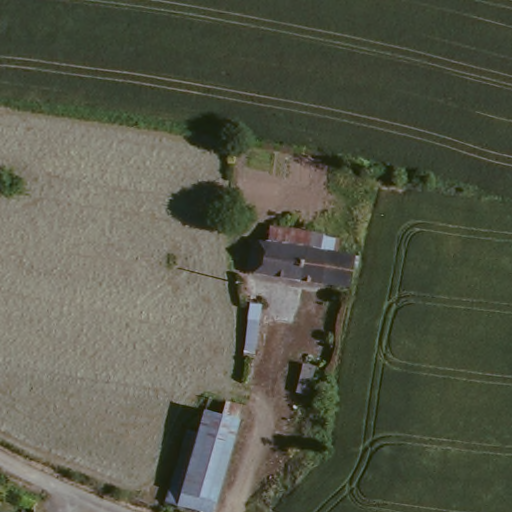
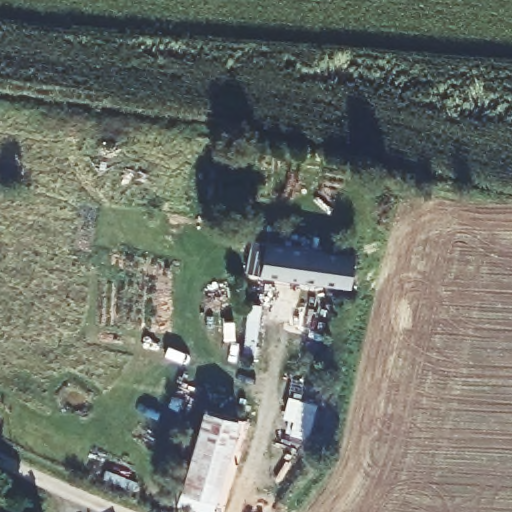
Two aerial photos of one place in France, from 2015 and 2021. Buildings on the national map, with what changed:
unchanged [(272,239),(275,224),(311,229),(305,276),(252,268),(257,236),(272,239)]
unchanged [(327,231),(324,247),(357,252),(352,284),(305,276),(311,229),(327,231)]
unchanged [(245,360),(252,310),(261,312),(254,362),(245,360)]
unchanged [(215,512),(213,512),(173,500),(194,428),(204,431),(210,410),(227,414),(231,403),(245,408),(215,512)]

